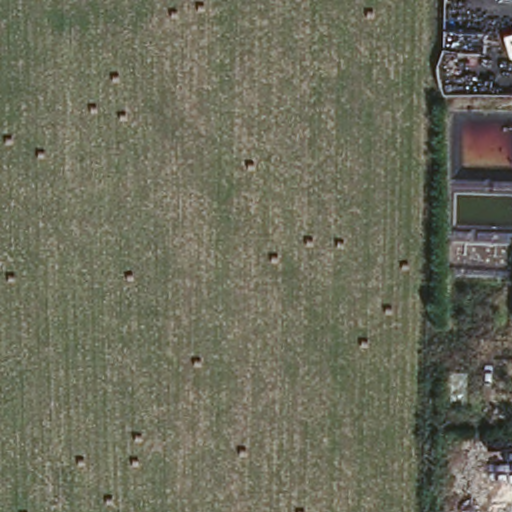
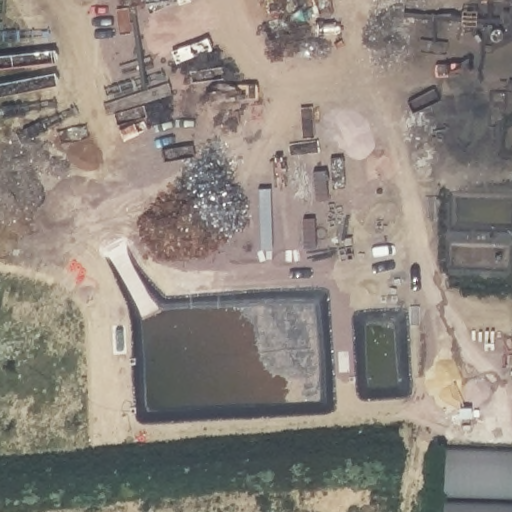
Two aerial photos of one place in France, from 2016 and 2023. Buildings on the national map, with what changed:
new [(512,512),(442,512),(444,452),(512,454),(512,512)]

